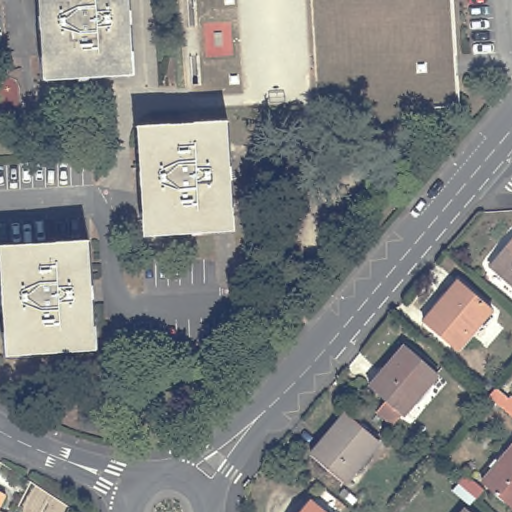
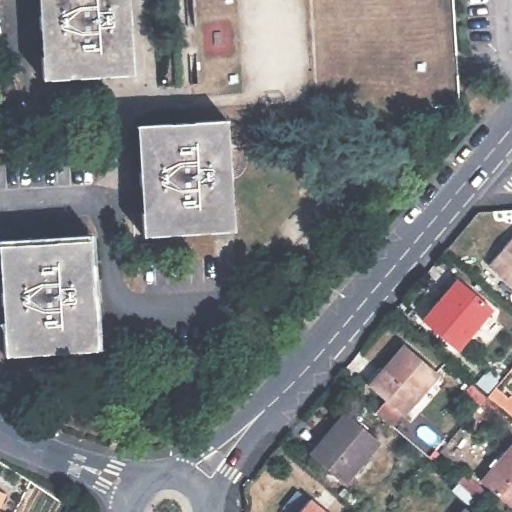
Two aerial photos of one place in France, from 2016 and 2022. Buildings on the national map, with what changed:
unchanged [(50,81),(45,0),(133,0),(138,76),(50,81)]
unchanged [(234,122),(238,235),(150,239),(143,130),(234,122)]
unchanged [(512,279),(493,263),(512,240),(512,279)]
unchanged [(98,352),(9,357),(2,246),(90,241),(98,352)]
unchanged [(493,308),(457,350),(426,322),(462,280),(493,308)]
unchanged [(371,386),(406,345),(440,375),(405,415),(371,386)]
unchanged [(381,443),(346,483),(312,455),(347,415),(381,443)]
unchanged [(481,500),(469,490),(478,478),(485,484),(512,454),(512,508),(491,490),(481,500)]
unchanged [(9,496),(1,512),(0,512),(0,492),(9,496)]
unchanged [(315,506),(322,512),(310,512),(315,506)]
unchanged [(466,510),(469,512),(464,512),(466,510)]

